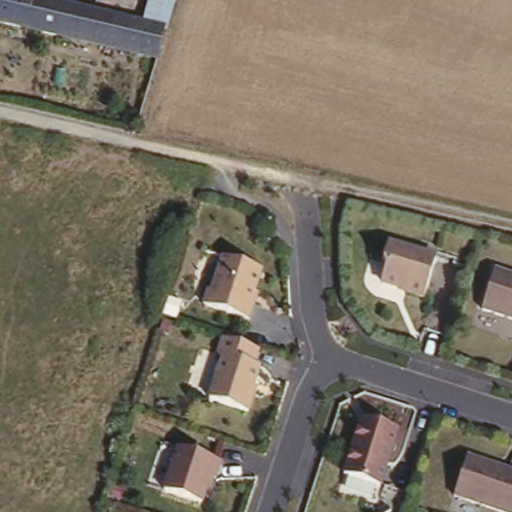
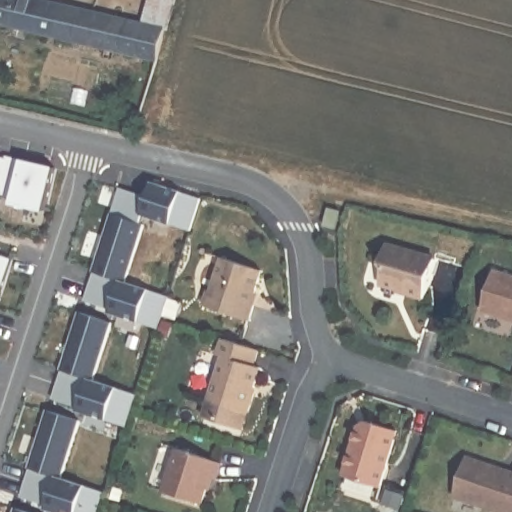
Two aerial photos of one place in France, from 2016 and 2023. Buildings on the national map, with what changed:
unchanged [(0,18),(0,0),(58,0),(85,6),(78,36),(0,18)]
unchanged [(160,23),(153,53),(78,36),(85,6),(160,23)]
new [(5,152),(6,149),(23,153),(38,156),(55,160),(45,204),(12,196),(13,189),(0,186),(0,150),(5,152)]
new [(119,185),(146,191),(150,179),(199,195),(190,225),(143,213),(141,223),(109,213),(119,185)]
new [(91,273),(90,273),(109,213),(141,223),(123,280),(118,279),(113,293),(88,284),(91,273)]
unchanged [(437,255),(426,294),(408,289),(409,287),(384,280),(388,266),(385,260),(390,242),(437,255)]
new [(10,258),(0,289),(0,254),(10,258)]
unchanged [(263,266),(253,300),(256,301),(251,317),(206,302),(211,287),(214,288),(225,254),(263,266)]
unchanged [(512,312),(485,304),(497,263),(512,268),(512,312)]
new [(88,284),(113,293),(118,279),(123,280),(167,295),(157,327),(107,311),(109,307),(83,299),(88,284)]
new [(61,368),(60,368),(79,308),(111,318),(91,378),(86,376),(82,390),(56,382),(61,368)]
unchanged [(260,347),(256,362),(262,364),(253,389),(256,390),(245,426),(207,410),(226,354),(220,352),(225,336),(260,347)]
new [(56,382),(82,390),(86,376),(91,378),(137,393),(126,425),(76,409),(77,405),(52,397),(56,382)]
new [(30,466),(28,466),(47,408),(78,418),(60,476),(55,474),(51,488),(25,480),(30,466)]
unchanged [(358,425),(365,422),(395,431),(377,487),(342,476),(358,425)]
unchanged [(208,486),(203,501),(166,489),(181,445),(224,460),(218,478),(214,489),(208,486)]
unchanged [(512,467),(512,511),(456,493),(469,453),(512,467)]
new [(51,488),(55,474),(60,476),(105,490),(98,512),(60,512),(44,507),(46,503),(20,495),(25,480),(51,488)]
new [(36,512),(13,512),(15,506),(36,512)]

